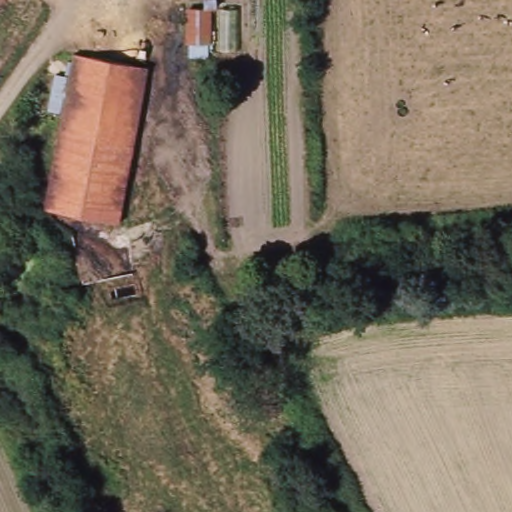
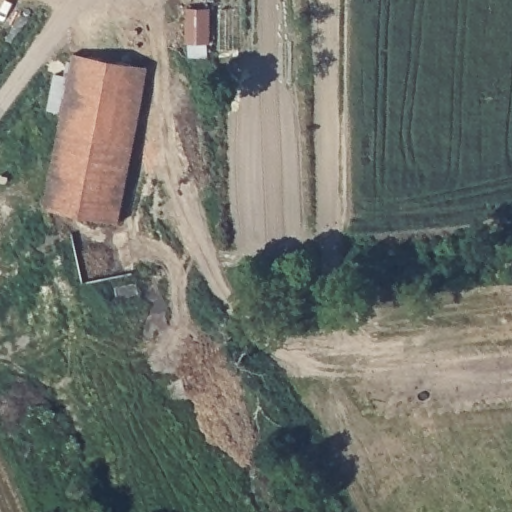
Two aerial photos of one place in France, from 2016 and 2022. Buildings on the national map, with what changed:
unchanged [(187,86),(188,33),(204,33),(204,86),(187,86)]
unchanged [(149,91),(118,244),(44,231),(76,76),(149,91)]

